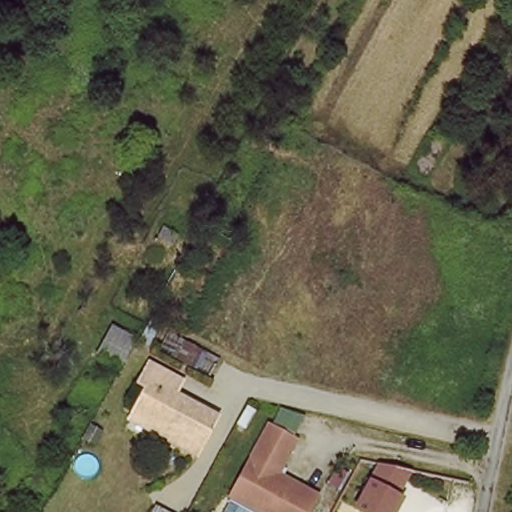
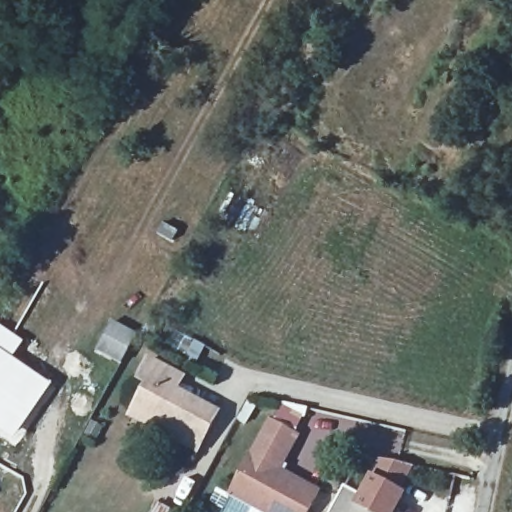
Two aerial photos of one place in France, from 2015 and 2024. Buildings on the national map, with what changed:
unchanged [(180,231),(175,241),(161,233),(166,224),(180,231)]
unchanged [(122,365),(99,352),(115,323),(138,336),(122,365)]
new [(14,358),(52,385),(13,444),(0,435),(0,325),(25,341),(14,358)]
unchanged [(406,338),(399,352),(381,344),(389,329),(406,338)]
unchanged [(139,412),(154,384),(146,380),(156,361),(189,378),(182,391),(225,414),(204,452),(175,437),(136,417),(139,412)]
unchanged [(309,512),(262,512),(241,501),(232,496),(271,423),(298,438),(296,442),(280,472),(319,494),(309,512)]
unchanged [(416,466),(399,491),(407,496),(398,512),(368,512),(356,506),(372,476),(380,459),(416,466)]
unchanged [(163,500),(185,512),(156,512),(163,500)]

